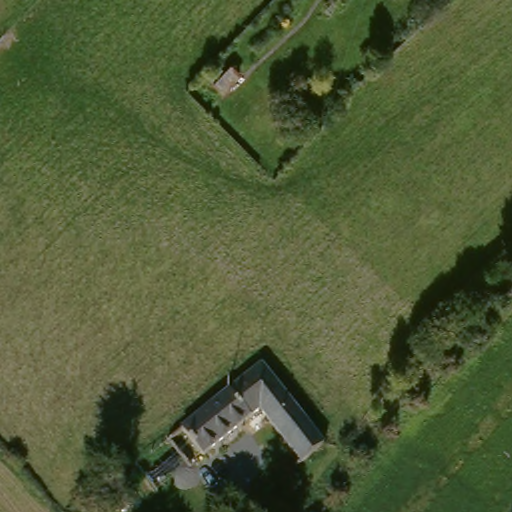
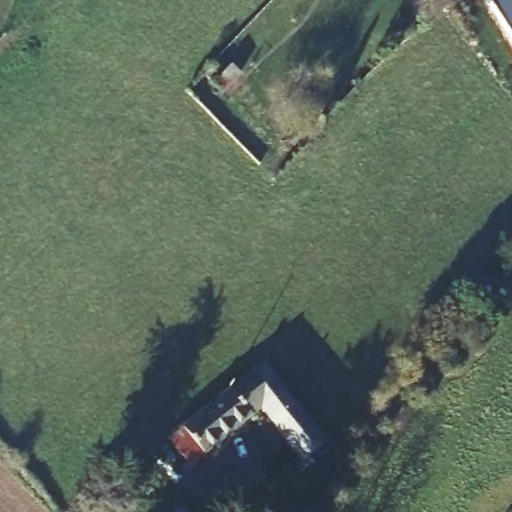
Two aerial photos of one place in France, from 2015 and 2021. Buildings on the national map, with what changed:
new [(512,0),(512,34),(492,4),(498,0),(512,0)]
unchanged [(306,462),(268,414),(196,470),(173,438),(267,364),(295,399),(331,444),(306,462)]

